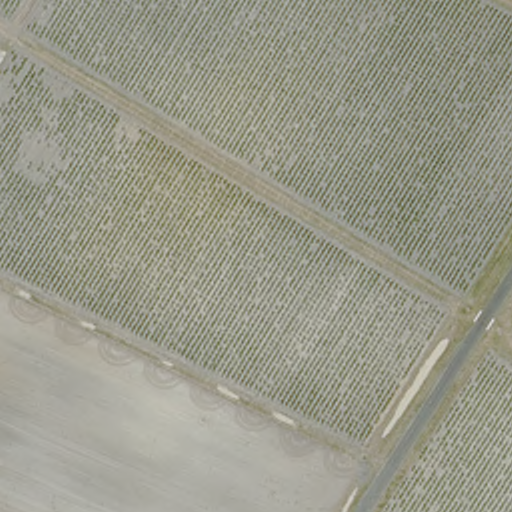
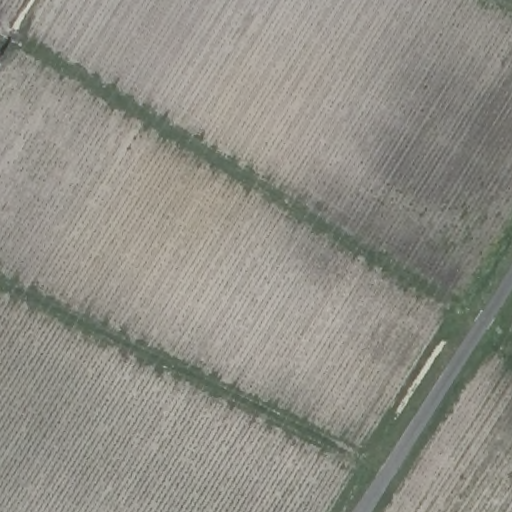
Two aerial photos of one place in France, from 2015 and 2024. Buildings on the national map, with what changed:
[]

